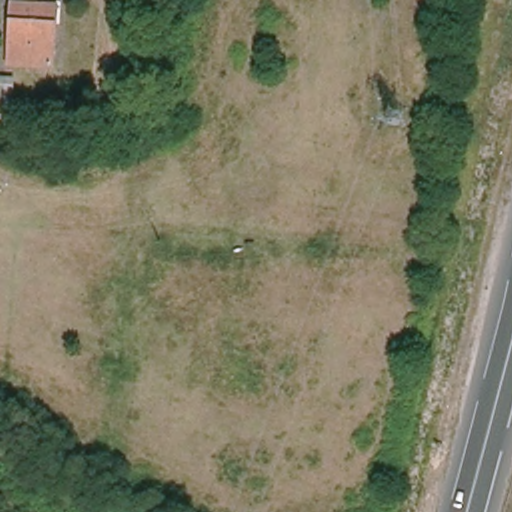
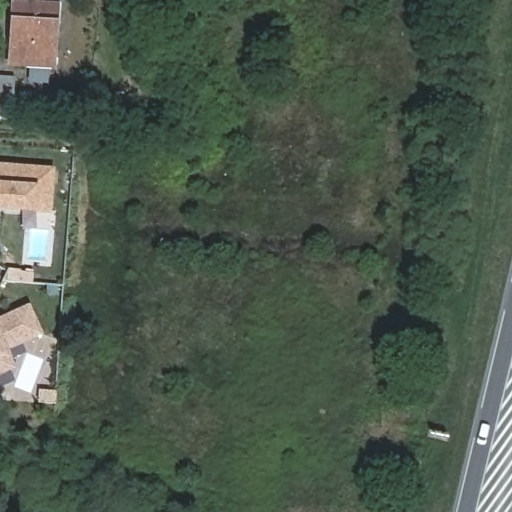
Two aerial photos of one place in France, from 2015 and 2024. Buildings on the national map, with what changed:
unchanged [(10,63),(13,20),(14,2),(48,4),(55,4),(55,22),(52,66),(10,63)]
unchanged [(0,113),(0,75),(15,76),(12,114),(0,113)]
new [(54,214),(0,210),(0,164),(57,170),(54,214)]
new [(12,350),(18,365),(0,374),(0,317),(30,303),(44,334),(12,350)]

